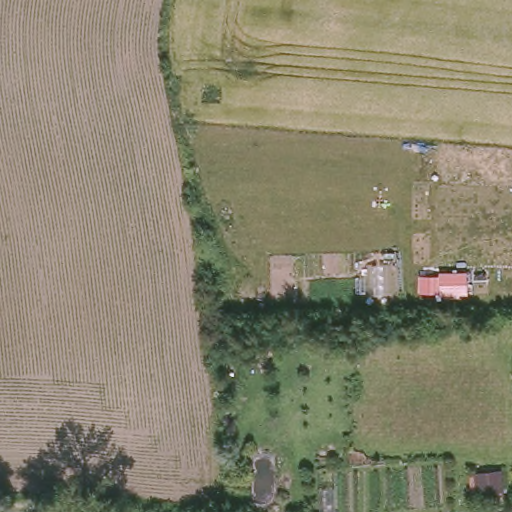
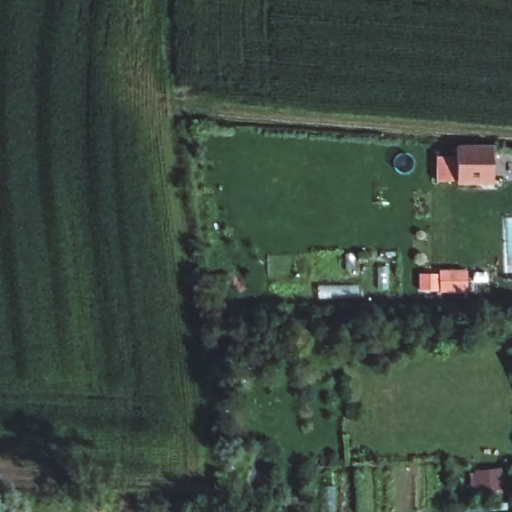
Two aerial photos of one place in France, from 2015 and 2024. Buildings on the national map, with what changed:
new [(457,183),(457,146),(492,146),(491,184),(457,183)]

